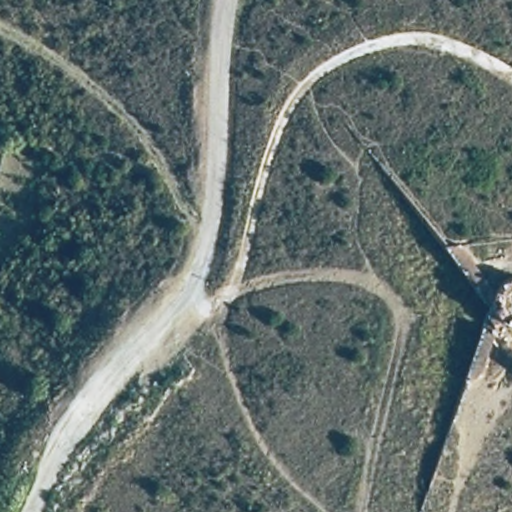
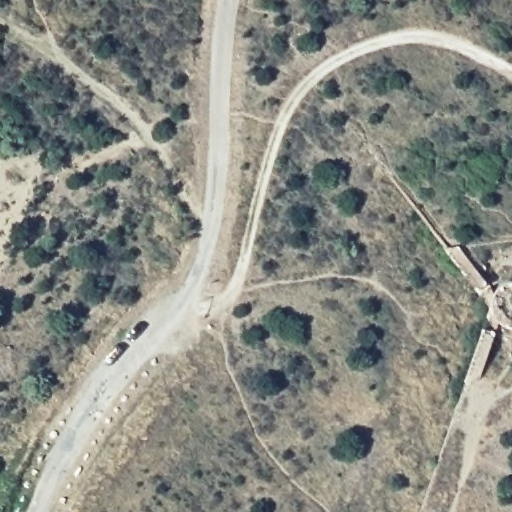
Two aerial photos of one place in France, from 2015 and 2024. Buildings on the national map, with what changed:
unchanged [(494,301),(498,292),(507,285),(512,284),(512,328),(510,328),(503,325),(496,316),(495,308),(494,301)]

